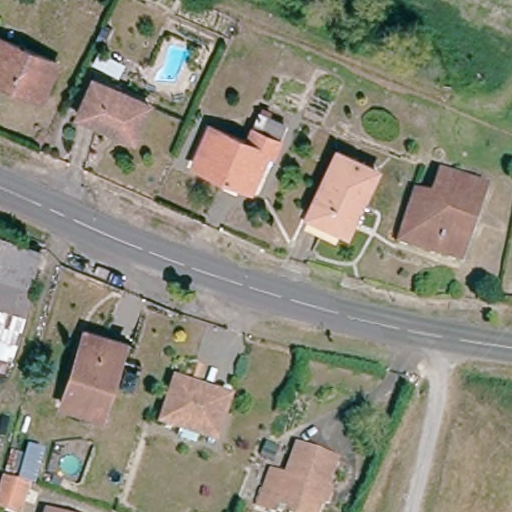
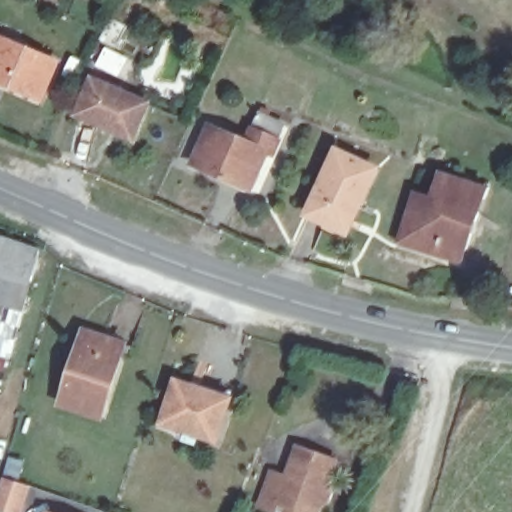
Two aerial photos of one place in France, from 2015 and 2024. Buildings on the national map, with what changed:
unchanged [(41,98),(0,80),(0,36),(57,62),(41,98)]
unchanged [(90,80),(139,104),(125,138),(76,115),(90,80)]
unchanged [(242,190),(195,171),(211,131),(242,144),(257,110),(286,123),(272,158),(267,157),(258,178),(251,194),(242,190)]
unchanged [(305,221),(333,154),(370,168),(354,209),(349,206),(338,233),(305,221)]
unchanged [(401,243),(418,194),(428,197),(438,170),(446,173),(486,186),(460,262),(401,243)]
unchanged [(5,362),(0,360),(0,233),(37,245),(5,362)]
unchanged [(93,414),(61,405),(80,331),(106,338),(121,343),(119,351),(110,385),(102,416),(93,414)]
unchanged [(177,387),(213,396),(212,403),(228,409),(222,437),(168,423),(177,387)]
unchanged [(273,469),(286,474),(296,444),(336,457),(317,512),(287,512),(290,503),(277,498),(274,508),(262,503),(273,469)]
unchanged [(35,499),(31,512),(0,512),(0,510),(5,490),(35,499)]

